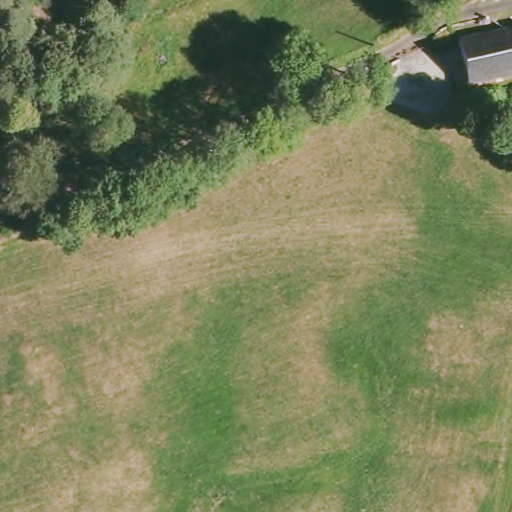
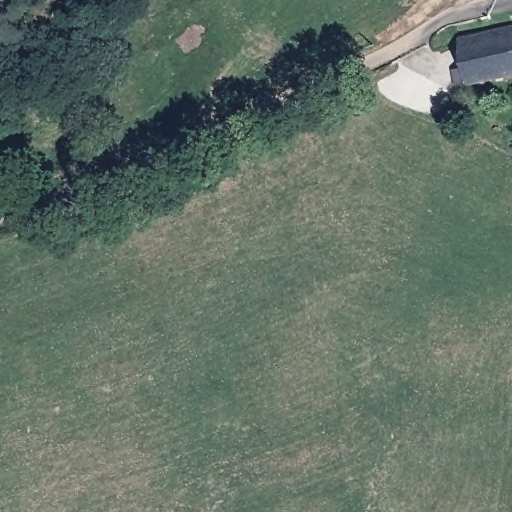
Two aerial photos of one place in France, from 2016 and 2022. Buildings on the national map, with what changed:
unchanged [(512,85),(477,94),(463,45),(512,32),(512,85)]

